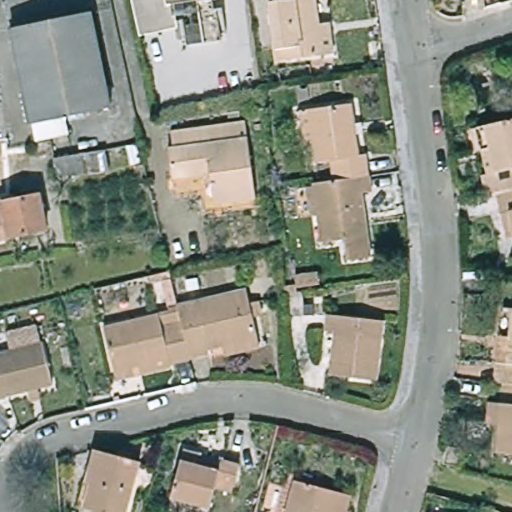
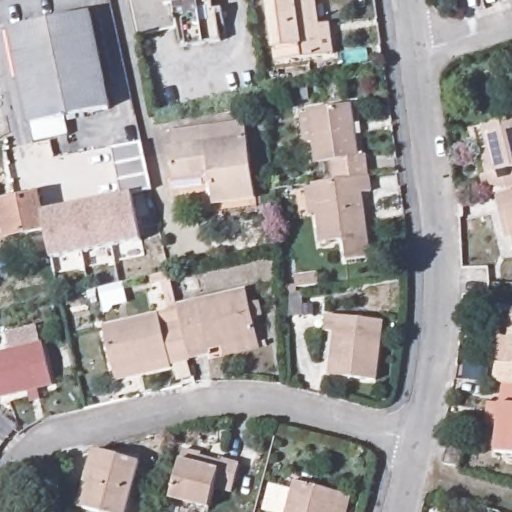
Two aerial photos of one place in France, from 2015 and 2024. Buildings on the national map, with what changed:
unchanged [(133,0),(229,0),(229,1),(214,4),(216,15),(224,14),(229,45),(189,51),(182,52),(178,27),(142,35),(133,0)]
unchanged [(324,56),(280,62),(272,5),(299,0),(316,0),(320,26),(332,25),(336,55),(324,56)]
unchanged [(52,137),(48,119),(32,123),(9,34),(89,13),(111,104),(66,115),(70,132),(52,137)]
unchanged [(338,181),(333,162),(319,164),(317,144),(308,145),(304,112),(353,105),(361,156),(367,156),(370,177),(338,181)]
unchanged [(486,192),(481,172),(486,170),(480,147),(475,148),(469,126),(512,116),(512,186),(496,190),(486,192)]
unchanged [(246,121),(257,197),(221,201),(206,127),(246,121)]
unchanged [(221,201),(214,202),(210,173),(173,177),(169,150),(175,150),(172,131),(206,127),(221,201)]
new [(142,141),(153,190),(133,193),(142,242),(51,260),(46,234),(43,212),(118,196),(112,147),(142,141)]
demolished [(147,160),(120,165),(72,175),(71,175),(68,159),(117,150),(142,145),(147,160)]
unchanged [(363,195),(370,237),(325,243),(320,215),(312,217),(307,186),(315,185),(338,181),(370,177),(372,192),(363,195)]
unchanged [(496,190),(512,186),(512,233),(506,235),(496,190)]
unchanged [(46,234),(7,238),(5,221),(0,221),(0,196),(40,191),(46,234)]
unchanged [(293,279),(315,276),(316,286),(294,288),(293,279)]
unchanged [(248,291),(262,348),(228,356),(225,347),(211,351),(212,355),(192,360),(184,324),(180,307),(248,291)]
unchanged [(493,378),(501,305),(512,306),(512,381),(501,380),(493,378)]
unchanged [(332,333),(323,331),(325,315),(380,323),(373,382),(328,376),(332,333)]
unchanged [(192,360),(172,365),(173,368),(119,380),(107,330),(162,316),(165,329),(184,324),(192,360)]
unchanged [(40,344),(50,385),(0,398),(0,354),(40,344)]
unchanged [(495,421),(483,419),(486,399),(498,401),(501,380),(512,381),(512,451),(492,448),(495,421)]
unchanged [(143,454),(127,510),(86,498),(94,475),(88,473),(98,441),(143,454)]
unchanged [(445,447),(462,452),(458,470),(441,465),(445,447)]
unchanged [(169,498),(181,450),(198,455),(197,458),(219,463),(220,460),(238,465),(230,492),(213,487),(207,508),(169,498)]
unchanged [(293,483),(334,494),(348,498),(344,512),(285,512),(293,483)]

